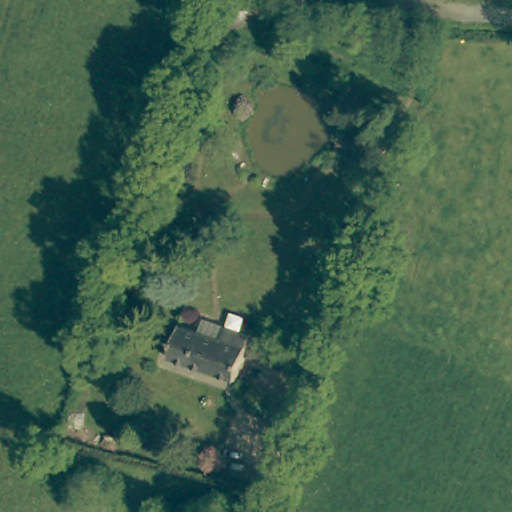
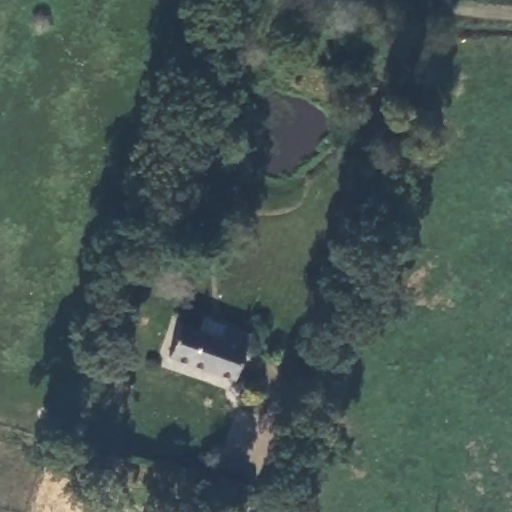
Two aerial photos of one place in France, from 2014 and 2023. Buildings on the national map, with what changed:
unchanged [(258,332),(239,380),(173,356),(187,321),(231,338),(238,324),(258,332)]

